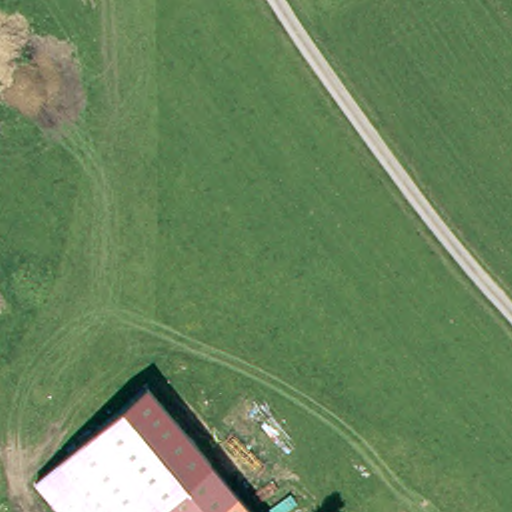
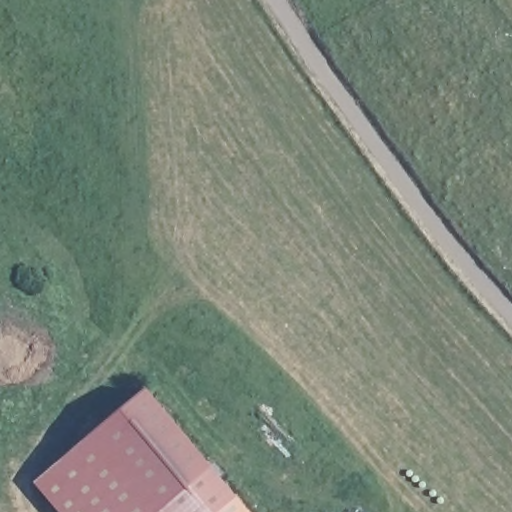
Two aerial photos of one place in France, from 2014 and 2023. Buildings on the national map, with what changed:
unchanged [(240,499),(250,512),(70,512),(52,489),(162,401),(240,499)]

